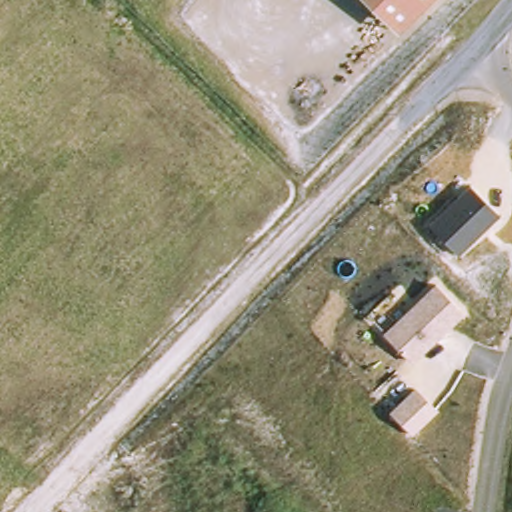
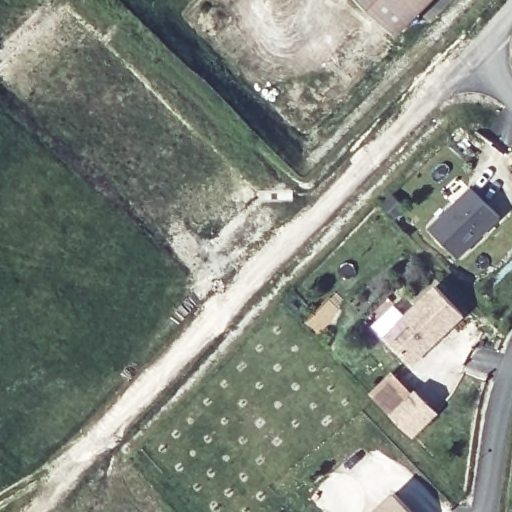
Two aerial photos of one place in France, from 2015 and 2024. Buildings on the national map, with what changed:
unchanged [(398,36),(362,0),(432,0),(398,36)]
unchanged [(501,215),(460,258),(428,228),(470,185),(501,215)]
unchanged [(466,313),(415,362),(385,331),(436,282),(466,313)]
unchanged [(413,392),(391,413),(369,393),(392,370),(413,392)]
unchanged [(439,413),(413,437),(391,413),(415,390),(439,413)]
new [(373,512),(394,491),(415,512),(373,512)]

